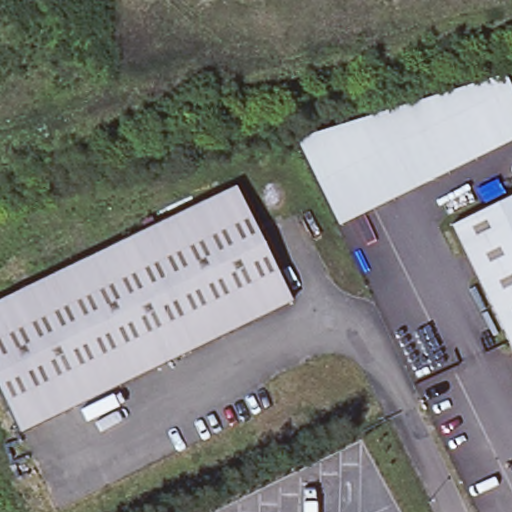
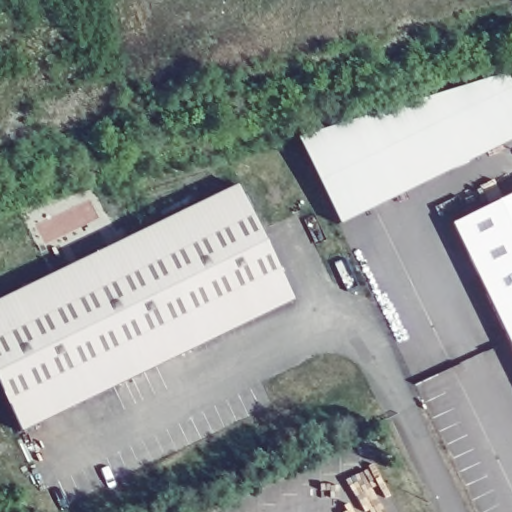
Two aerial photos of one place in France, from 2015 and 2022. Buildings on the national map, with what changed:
unchanged [(295,139),(505,74),(512,87),(512,139),(337,225),(295,139)]
unchanged [(291,300),(18,432),(0,393),(0,300),(236,186),(291,300)]
unchanged [(512,195),(512,348),(451,225),(512,195)]

